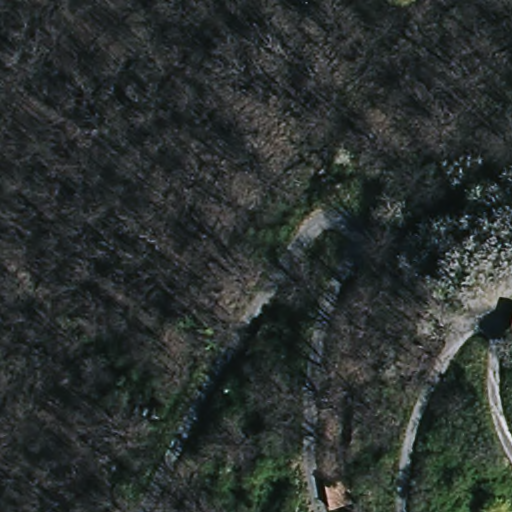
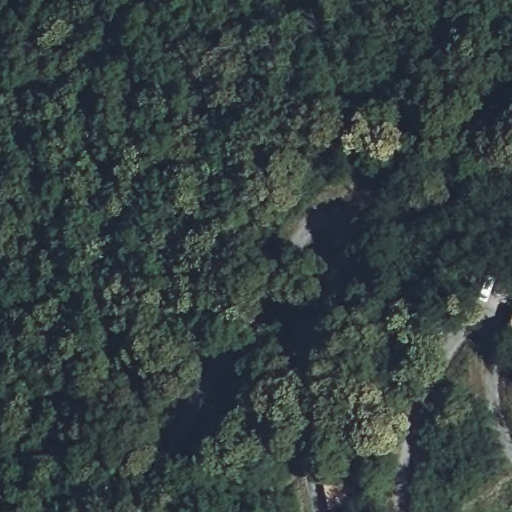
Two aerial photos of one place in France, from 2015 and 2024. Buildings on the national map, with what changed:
unchanged [(512,336),(512,339),(511,338),(512,336)]
unchanged [(350,477),(354,500),(329,503),(324,479),(350,477)]

